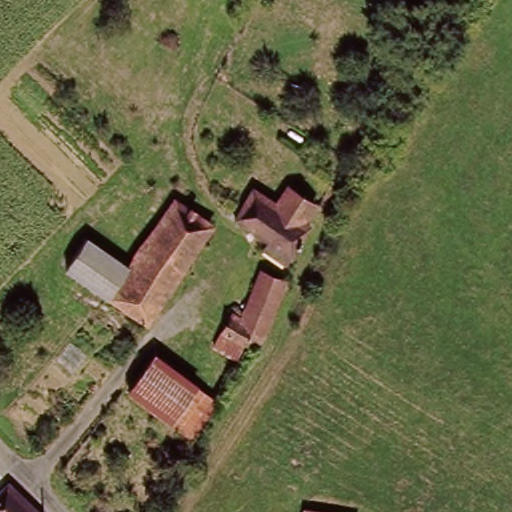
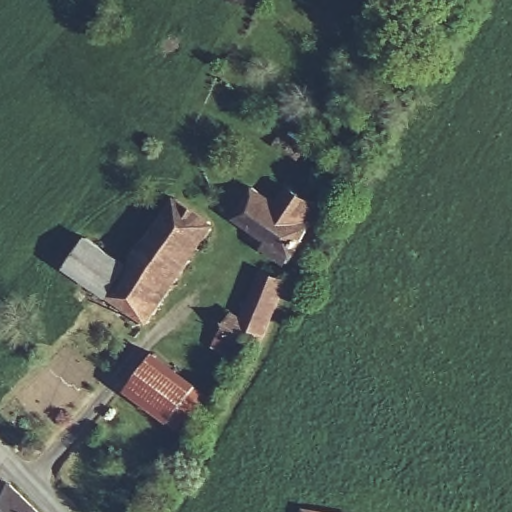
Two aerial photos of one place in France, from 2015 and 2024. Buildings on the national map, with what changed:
unchanged [(291,256),(233,217),(251,190),(276,205),(286,189),(309,203),(299,220),(308,225),(291,256)]
unchanged [(148,322),(104,293),(123,267),(171,197),(213,224),(148,322)]
unchanged [(104,293),(65,268),(84,241),(123,267),(104,293)]
unchanged [(243,342),(236,356),(212,346),(228,313),(240,318),(258,271),(282,280),(256,348),(243,342)]
unchanged [(126,383),(151,350),(193,378),(169,414),(126,383)]
unchanged [(169,414),(193,378),(216,392),(192,428),(169,414)]
unchanged [(39,512),(0,512),(0,487),(9,477),(41,508),(39,512)]
unchanged [(299,507),(331,512),(299,512),(299,507)]

